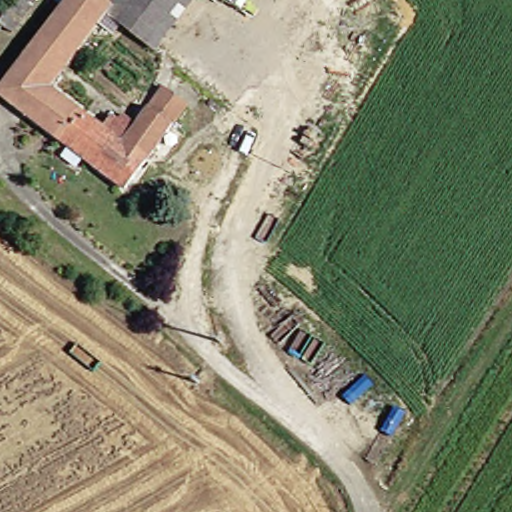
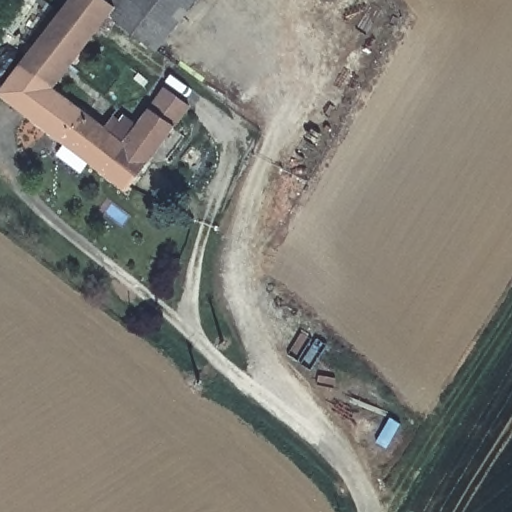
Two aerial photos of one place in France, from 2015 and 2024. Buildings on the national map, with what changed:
unchanged [(108,15),(54,85),(114,136),(127,119),(137,127),(168,89),(194,109),(126,192),(0,101),(0,90),(68,0),(104,0),(113,7),(108,15)]
unchanged [(153,49),(108,15),(113,7),(104,0),(191,0),(153,49)]

